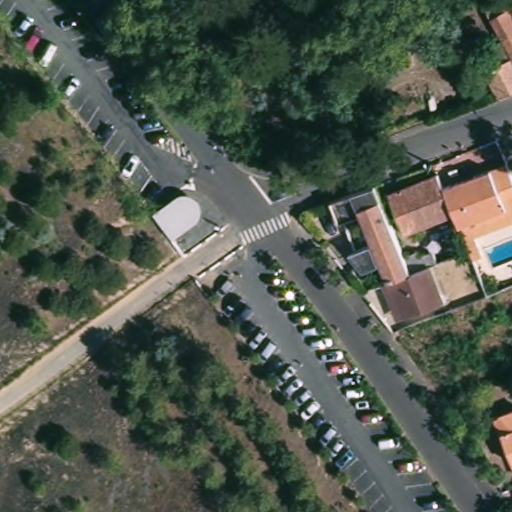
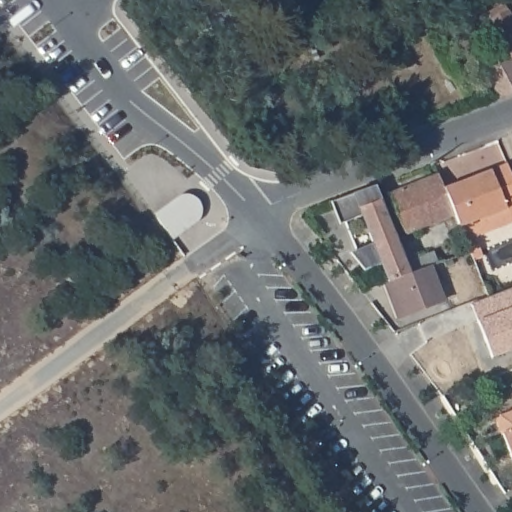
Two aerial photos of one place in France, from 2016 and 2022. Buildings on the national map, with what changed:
unchanged [(201,0),(236,0),(251,44),(219,55),(210,28),(207,29),(199,8),(204,6),(201,0)]
unchanged [(495,11),(498,17),(509,12),(512,18),(512,54),(490,13),(495,11)]
unchanged [(411,16),(420,36),(406,43),(396,23),(411,16)]
unchanged [(307,43),(311,51),(305,54),(301,46),(307,43)]
unchanged [(512,91),(499,95),(486,69),(512,58),(512,91)]
unchanged [(480,170),(494,164),(511,203),(495,209),(447,226),(443,215),(432,188),(480,170)]
unchanged [(427,174),(432,188),(443,215),(395,233),(393,226),(379,192),(427,174)]
unchanged [(393,226),(395,233),(409,272),(434,264),(447,304),(399,319),(385,281),(389,280),(383,263),(366,269),(352,250),(374,242),(363,213),(341,222),(335,200),(376,184),(379,192),(393,226)]
unchanged [(180,190),(206,222),(179,243),(154,211),(180,190)]
new [(512,349),(494,356),(473,302),(512,287),(512,349)]
unchanged [(499,415),(512,410),(512,463),(501,433),(504,431),(499,415)]

